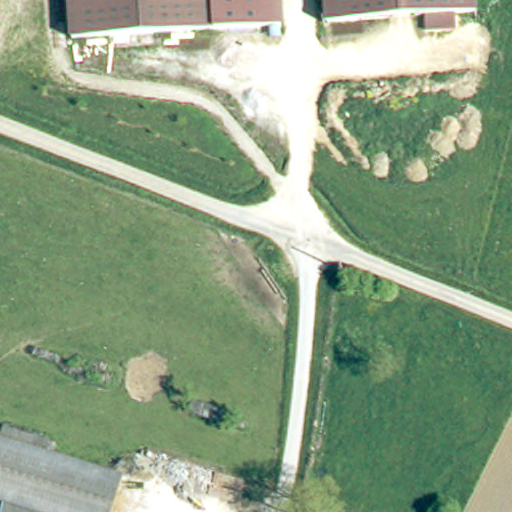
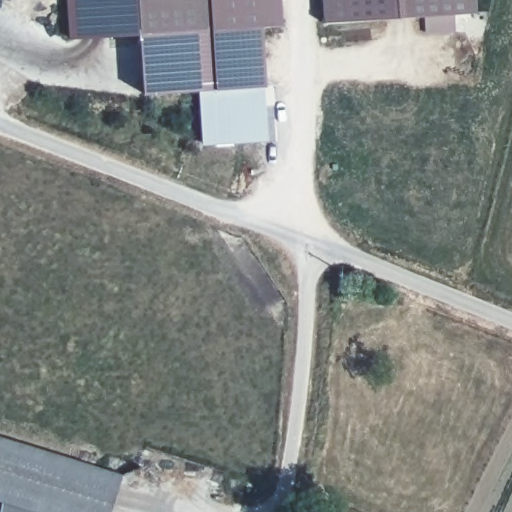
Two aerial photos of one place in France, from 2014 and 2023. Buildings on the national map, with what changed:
unchanged [(218,34),(78,45),(74,0),(215,0),(218,34)]
unchanged [(284,28),(218,34),(215,0),(282,0),(284,28)]
unchanged [(478,15),(323,25),(321,0),(477,0),(478,15)]
new [(218,34),(262,30),(268,90),(263,90),(201,95),(145,100),(141,40),(218,34)]
new [(263,90),(266,142),(206,147),(201,95),(263,90)]
unchanged [(0,499),(0,437),(123,475),(113,512),(6,512),(7,501),(0,499)]

